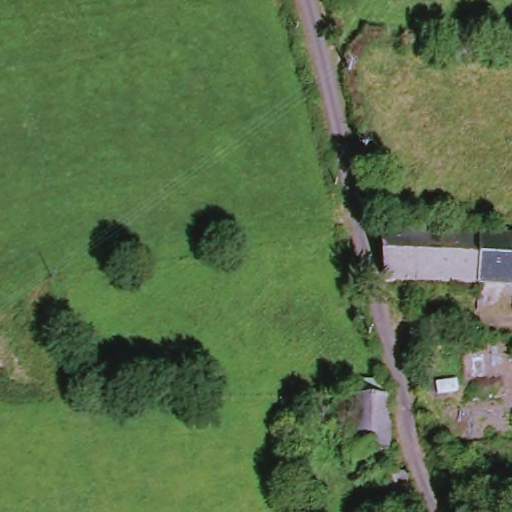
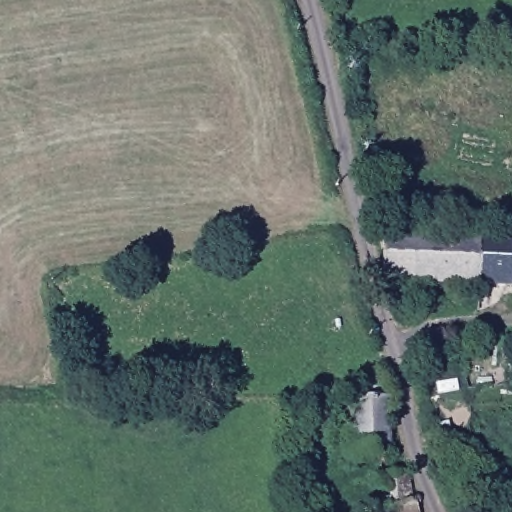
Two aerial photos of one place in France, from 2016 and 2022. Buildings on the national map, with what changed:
unchanged [(382,229),(479,232),(477,281),(387,279),(382,229)]
unchanged [(479,232),(512,233),(512,282),(477,281),(479,232)]
unchanged [(359,378),(385,379),(394,444),(349,448),(344,391),(359,391),(359,378)]
unchanged [(381,506),(385,505),(385,474),(409,471),(415,498),(417,512),(382,512),(381,506)]

